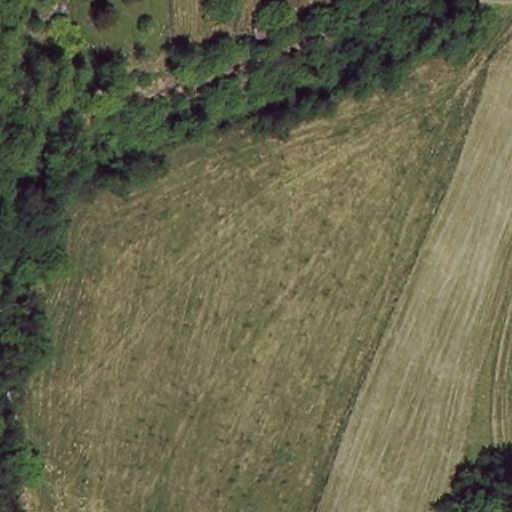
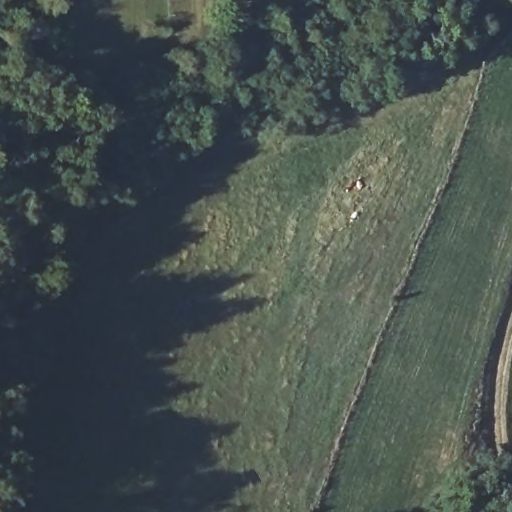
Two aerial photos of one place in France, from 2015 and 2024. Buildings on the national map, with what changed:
[]

